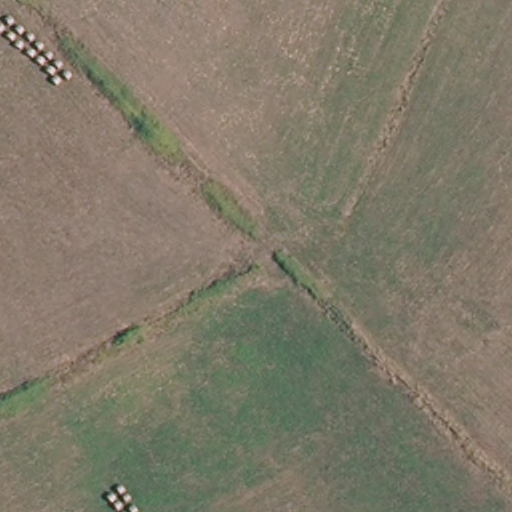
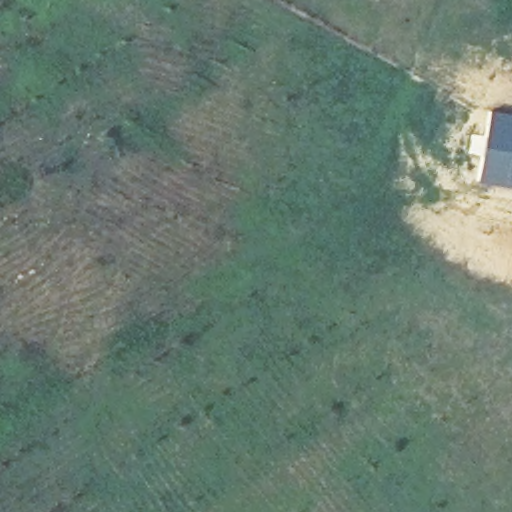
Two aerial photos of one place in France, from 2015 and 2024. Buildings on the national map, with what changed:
new [(490,111),(512,114),(512,188),(479,182),(490,111)]

